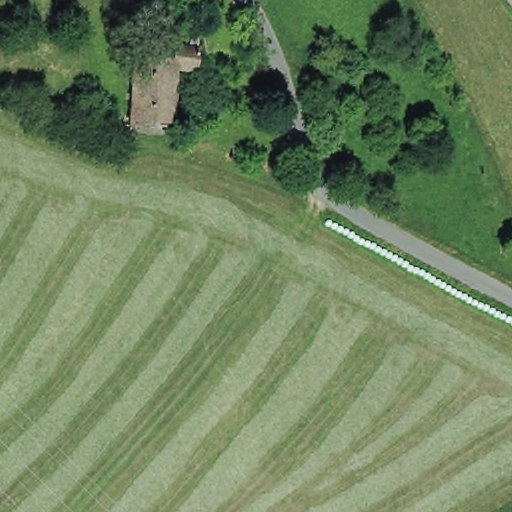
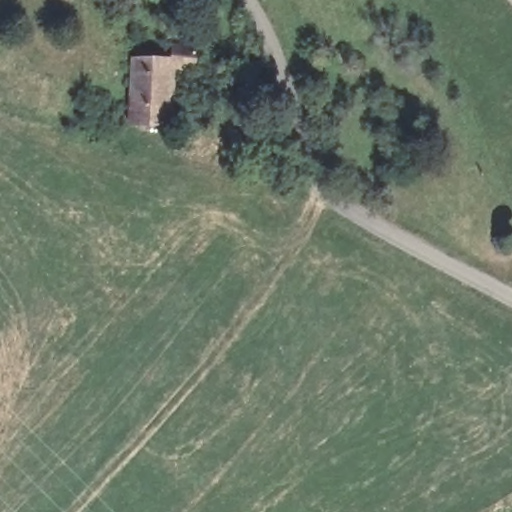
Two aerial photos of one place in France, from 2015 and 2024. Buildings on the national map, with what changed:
unchanged [(125,121),(127,54),(163,56),(165,41),(190,42),(190,67),(169,66),(168,122),(125,121)]

